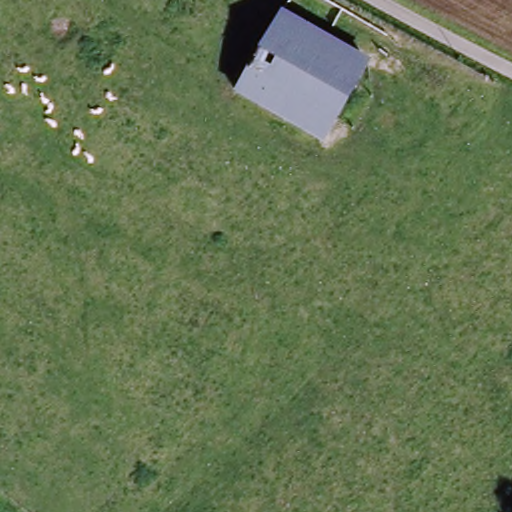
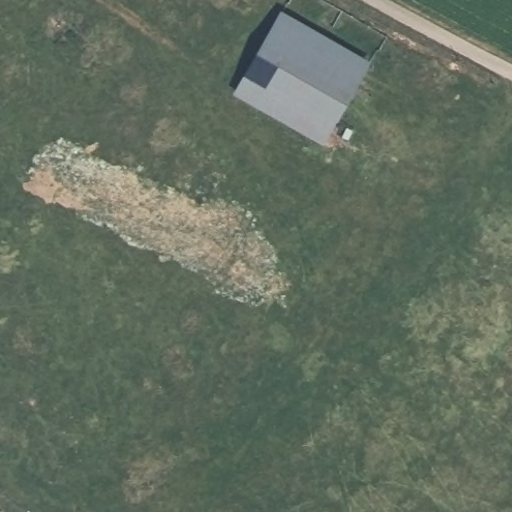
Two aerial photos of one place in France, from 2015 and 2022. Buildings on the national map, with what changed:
unchanged [(320,141),(231,89),(277,11),(365,63),(320,141)]

